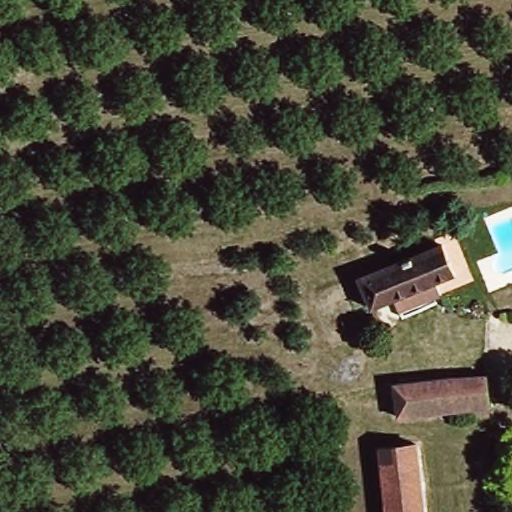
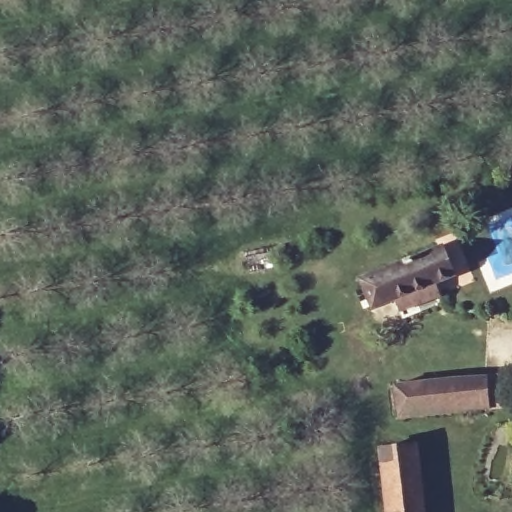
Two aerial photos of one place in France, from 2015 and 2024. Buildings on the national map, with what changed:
unchanged [(395,311),(392,302),(370,310),(360,277),(445,245),(457,276),(434,285),(438,295),(395,311)]
unchanged [(397,385),(487,375),(490,406),(400,416),(397,385)]
unchanged [(421,512),(391,512),(383,447),(413,443),(421,512)]

